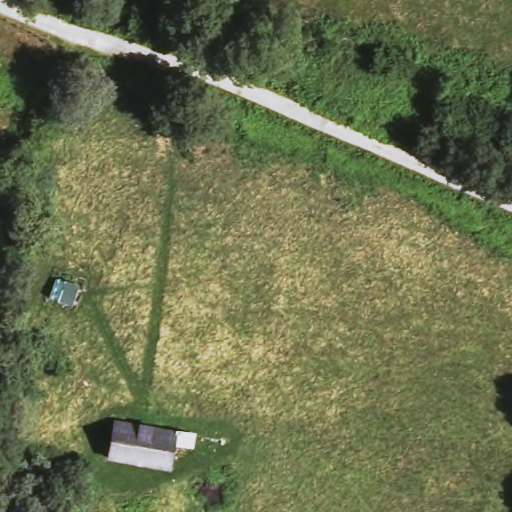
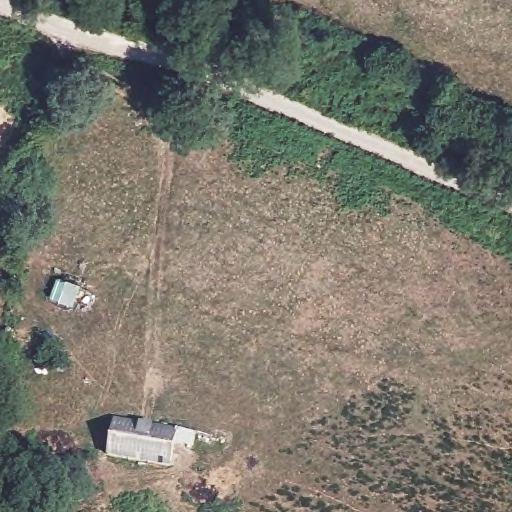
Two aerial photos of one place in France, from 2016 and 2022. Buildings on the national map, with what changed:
unchanged [(177,426),(170,467),(130,459),(107,454),(116,413),(177,426)]

